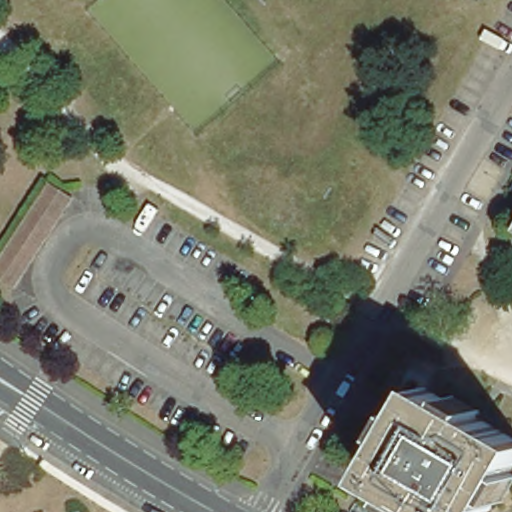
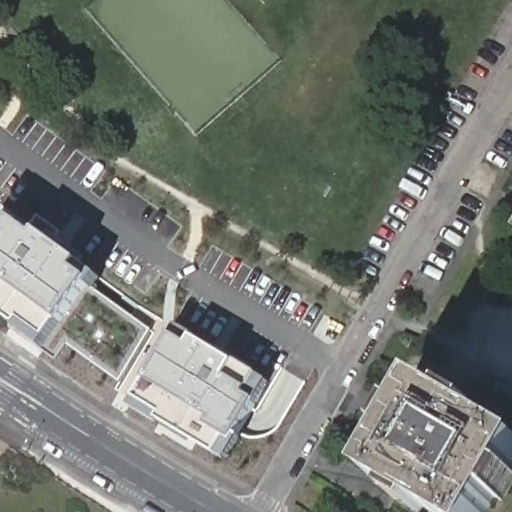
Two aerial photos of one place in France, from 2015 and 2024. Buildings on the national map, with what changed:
demolished [(74,191),(16,282),(0,272),(0,256),(50,176),(74,191)]
new [(6,211),(16,216),(14,221),(37,237),(40,235),(82,265),(101,277),(94,287),(153,331),(122,382),(70,345),(58,360),(44,350),(17,331),(20,328),(0,313),(0,221),(6,211)]
new [(218,455),(131,408),(177,335),(267,384),(232,441),(229,438),(218,455)]
unchanged [(370,483),(388,441),(377,436),(388,408),(400,414),(412,387),(439,400),(441,393),(470,406),(467,413),(512,434),(512,452),(506,464),(512,466),(512,481),(505,496),(494,490),(484,512),(432,512),(422,507),(420,512),(415,512),(391,501),(395,495),(370,483)]
unchanged [(375,512),(374,512),(374,511),(375,512)]

